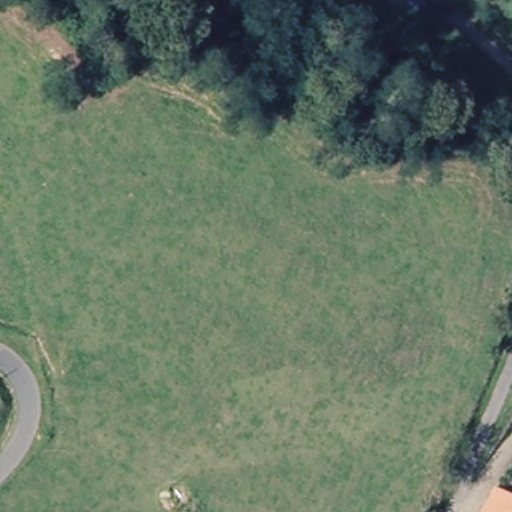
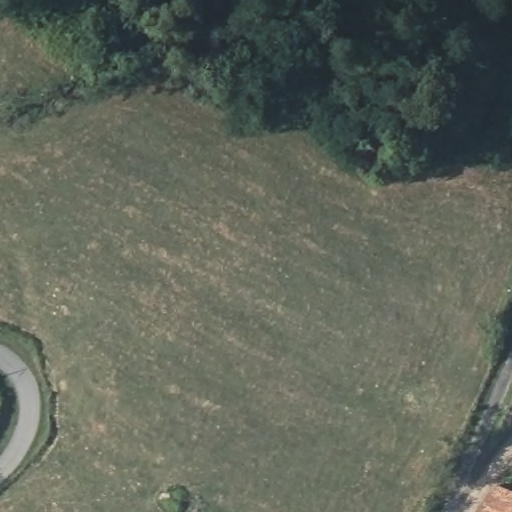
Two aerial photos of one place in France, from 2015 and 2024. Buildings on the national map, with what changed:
unchanged [(512,494),(512,512),(485,512),(499,488),(512,494)]

